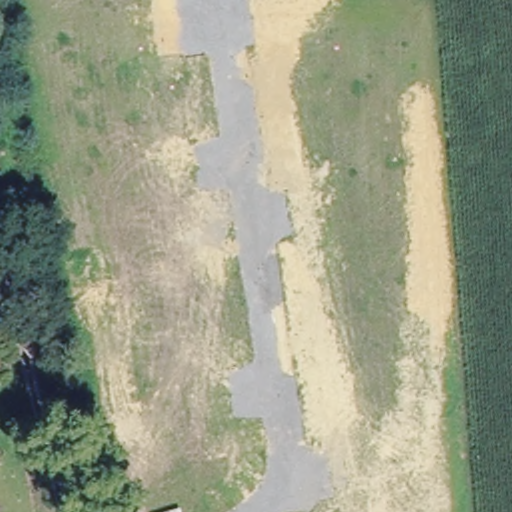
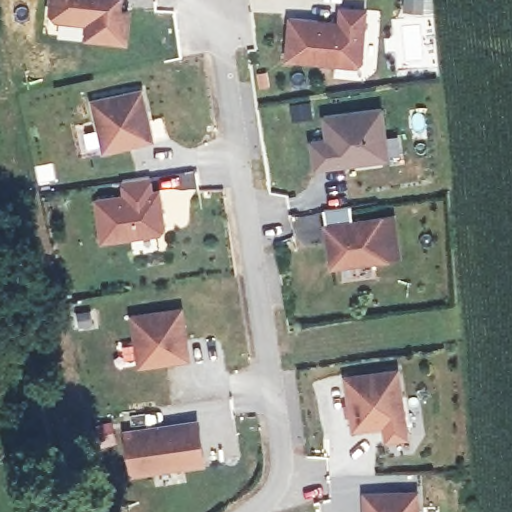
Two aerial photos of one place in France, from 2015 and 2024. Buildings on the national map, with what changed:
new [(47,0),(114,0),(114,8),(123,9),(120,39),(82,35),(83,20),(52,17),(46,11),(47,0)]
new [(315,19),(325,20),(336,21),(337,6),(362,7),(360,22),(357,64),(283,58),(286,17),(315,19)]
new [(92,99),(140,88),(150,136),(103,147),(92,99)]
new [(313,130),(328,127),(325,105),(383,96),(390,146),(317,156),(313,130)]
new [(95,202),(123,197),(121,182),(148,178),(150,194),(158,192),(163,227),(158,234),(100,242),(95,202)]
new [(352,210),(354,225),(394,219),(400,260),(333,270),(325,213),(352,210)]
new [(135,313),(183,306),(190,355),(142,362),(135,313)]
new [(388,441),(386,426),(355,430),(347,379),(398,372),(406,422),(408,437),(388,441)]
new [(198,419),(204,459),(132,470),(127,430),(198,419)]
new [(111,423),(116,441),(102,445),(98,427),(111,423)]
new [(418,488),(419,512),(367,512),(367,491),(418,488)]

